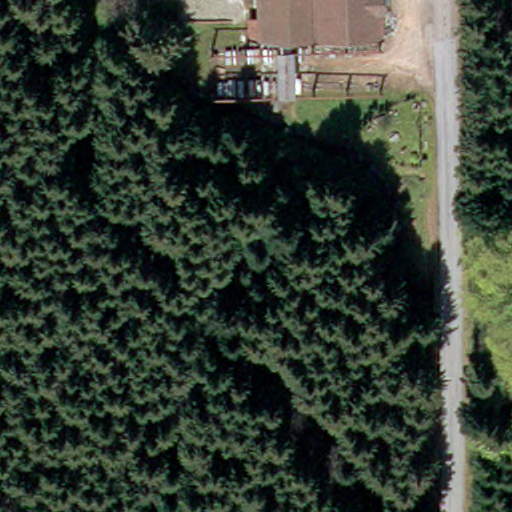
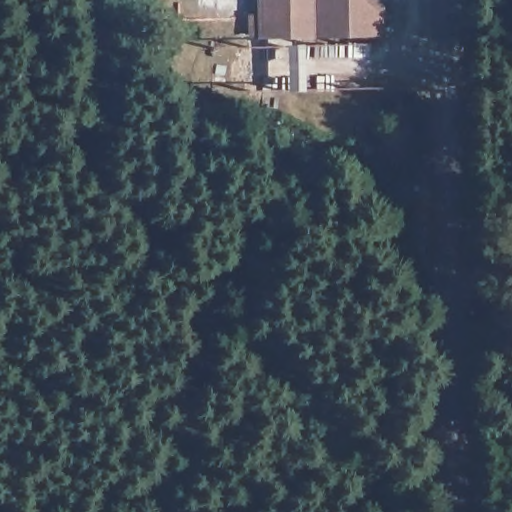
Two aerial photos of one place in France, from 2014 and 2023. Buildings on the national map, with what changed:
unchanged [(383,31),(250,37),(249,18),(260,17),(260,0),(382,0),(383,31)]

